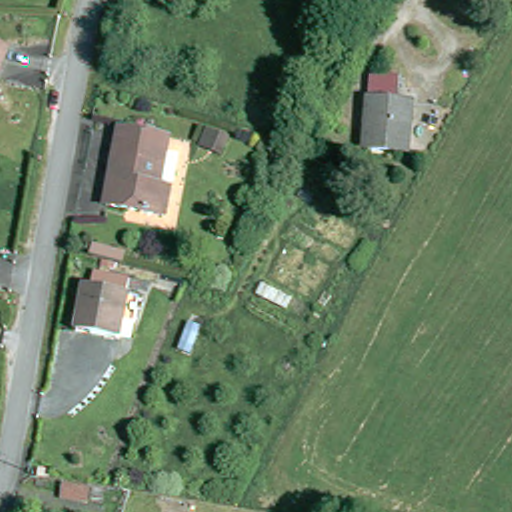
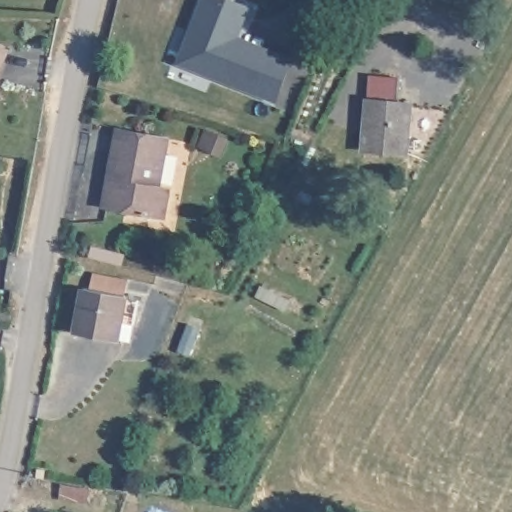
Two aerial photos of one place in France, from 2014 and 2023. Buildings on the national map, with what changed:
new [(210,76),(211,71),(182,61),(192,34),(189,32),(199,0),(228,0),(245,6),(233,39),(241,41),(288,60),(275,95),(275,99),(244,88),(210,76)]
unchanged [(0,77),(0,40),(13,46),(0,77)]
unchanged [(372,81),(405,82),(405,96),(410,97),(407,149),(368,146),(372,81)]
unchanged [(172,132),(163,181),(173,183),(168,212),(112,203),(125,125),(172,132)]
new [(229,139),(220,158),(197,146),(205,126),(229,139)]
unchanged [(116,261),(115,273),(85,268),(87,257),(116,261)]
unchanged [(130,295),(123,339),(83,330),(88,286),(130,295)]
unchanged [(175,324),(185,324),(188,324),(187,326),(185,353),(173,353),(175,324)]

